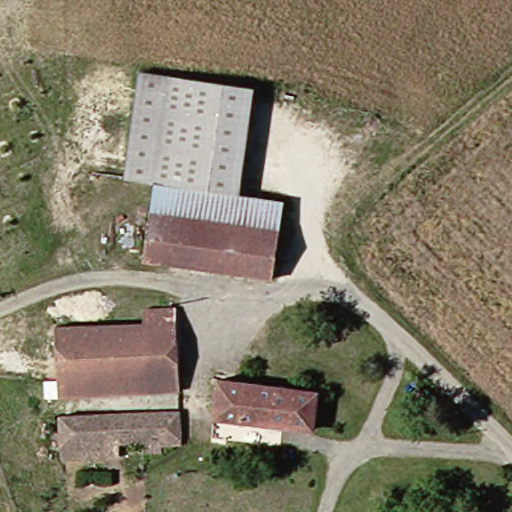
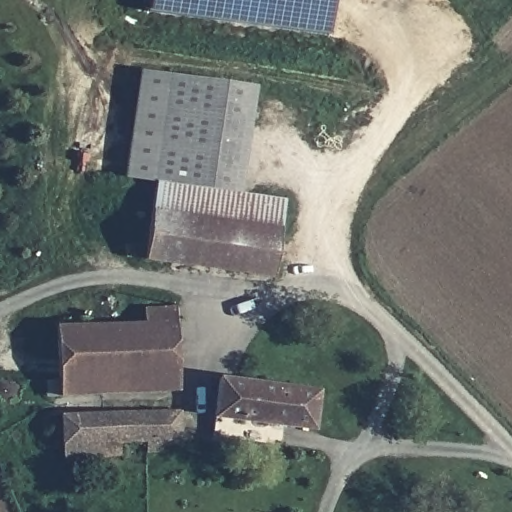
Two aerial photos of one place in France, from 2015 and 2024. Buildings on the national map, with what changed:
new [(163,11),(163,7),(154,6),(155,0),(334,0),(330,33),(163,11)]
unchanged [(123,176),(141,72),(172,77),(154,182),(123,176)]
unchanged [(270,283),(152,265),(141,263),(154,182),(172,77),(255,92),(235,199),(268,204),(282,206),(278,238),(270,283)]
unchanged [(52,395),(50,326),(140,327),(140,314),(171,315),(170,328),(170,380),(170,397),(52,395)]
unchanged [(305,430),(208,421),(212,382),(308,392),(305,430)]
unchanged [(166,450),(143,448),(143,459),(128,458),(128,443),(72,446),(70,458),(51,456),(50,416),(170,418),(166,450)]

